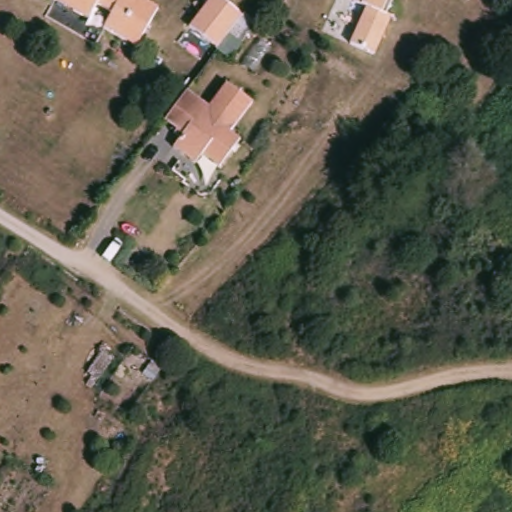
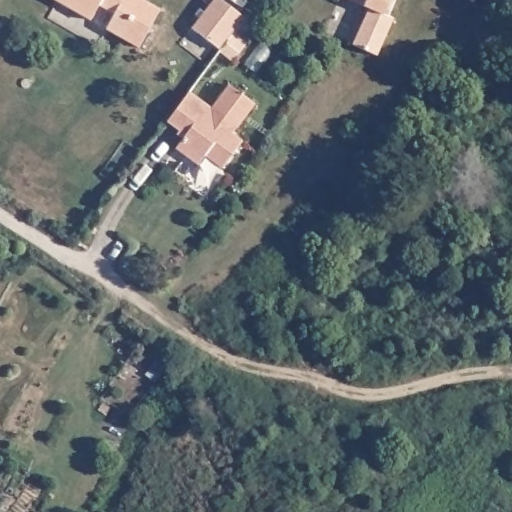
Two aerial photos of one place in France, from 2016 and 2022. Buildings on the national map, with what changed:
unchanged [(138,45),(106,26),(114,11),(99,2),(91,17),(60,0),(146,0),(159,7),(138,45)]
unchanged [(229,57),(216,46),(189,27),(210,0),(223,0),(241,15),(251,23),(229,57)]
unchanged [(390,12),(396,15),(378,61),(350,45),(367,11),(347,0),(397,0),(390,12)]
unchanged [(190,86),(212,102),(230,78),(256,97),(233,129),(243,136),(223,164),(205,151),(198,160),(176,144),(186,129),(168,115),(190,86)]

